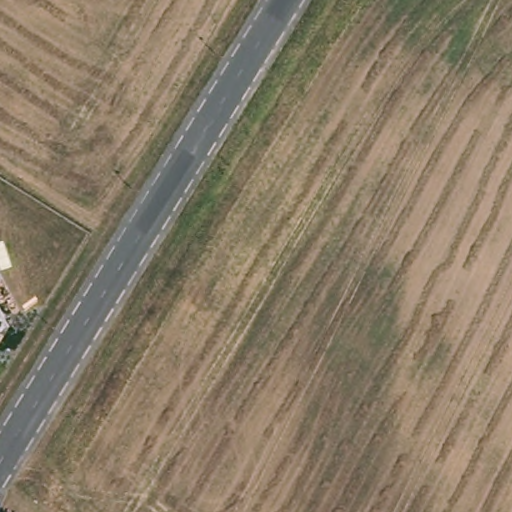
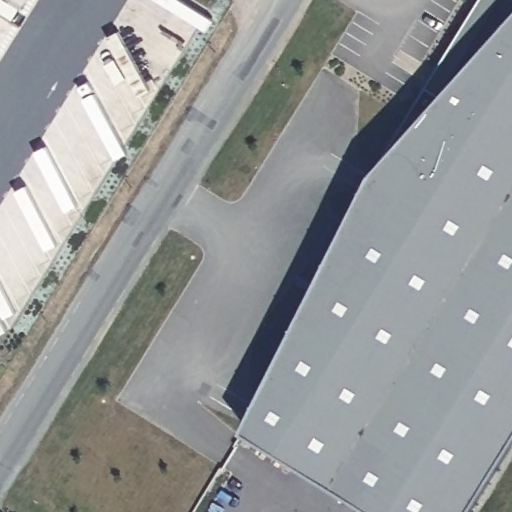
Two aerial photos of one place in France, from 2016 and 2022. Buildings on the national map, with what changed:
new [(272,372),(375,169),(479,0),(512,0),(512,445),(470,512),(383,512),(245,426),(245,425),(272,372)]

